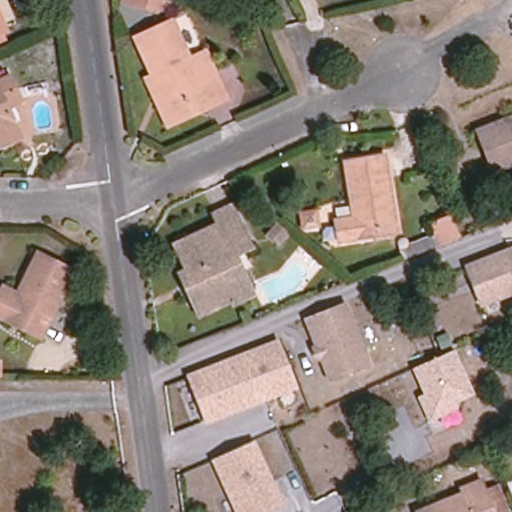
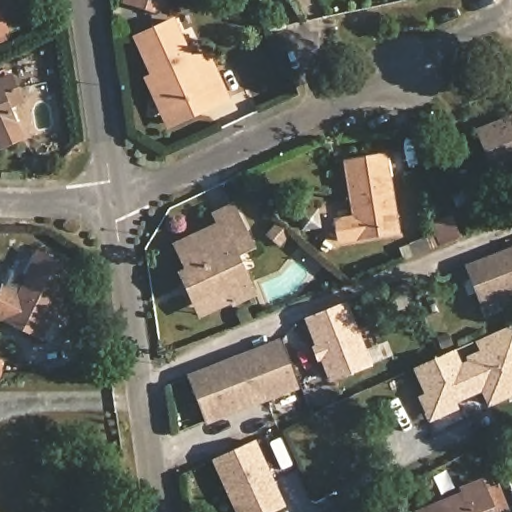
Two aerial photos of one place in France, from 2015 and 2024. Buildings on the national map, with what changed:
unchanged [(150,10),(131,4),(132,0),(161,0),(157,12),(150,10)]
unchanged [(7,30),(0,33),(0,16),(7,30)]
unchanged [(147,78),(153,75),(135,37),(171,21),(188,59),(206,51),(227,99),(210,106),(169,126),(147,78)]
unchanged [(0,146),(0,81),(11,76),(16,89),(22,101),(8,106),(22,137),(0,146)]
unchanged [(512,117),(512,165),(494,173),(477,131),(512,117)]
unchanged [(355,219),(346,161),(385,156),(397,231),(340,240),(337,222),(355,219)]
unchanged [(249,244),(232,252),(254,297),(235,306),(227,290),(196,305),(183,278),(189,274),(177,249),(220,228),(216,219),(233,211),(249,244)]
unchanged [(461,238),(440,247),(430,223),(451,214),(461,238)]
unchanged [(512,294),(483,306),(468,268),(512,251),(512,294)]
unchanged [(70,271),(37,338),(0,320),(33,253),(70,271)]
unchanged [(308,320),(346,305),(369,365),(332,379),(323,358),(319,359),(314,347),(318,346),(308,320)]
new [(512,397),(488,408),(479,388),(468,393),(451,355),(506,330),(512,345),(512,397)]
unchanged [(280,341),(298,386),(210,420),(192,375),(280,341)]
unchanged [(0,373),(0,347),(19,349),(17,374),(0,373)]
unchanged [(453,403),(457,411),(427,423),(415,398),(421,394),(410,369),(451,355),(468,393),(479,388),(481,392),(470,397),(453,403)]
unchanged [(214,458),(253,441),(281,504),(262,512),(238,512),(214,458)]
unchanged [(463,489),(482,481),(485,489),(500,483),(511,510),(506,512),(419,512),(464,494),(463,489)]

